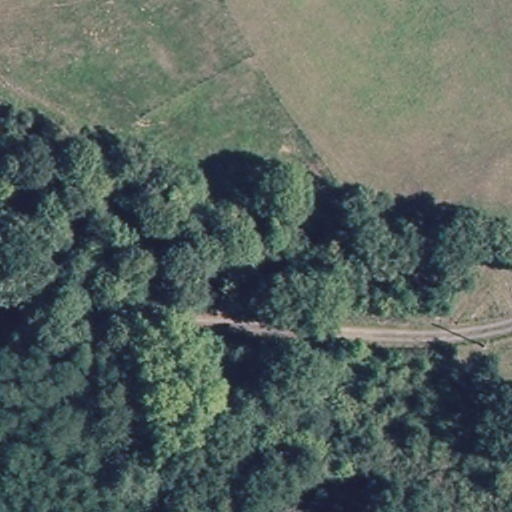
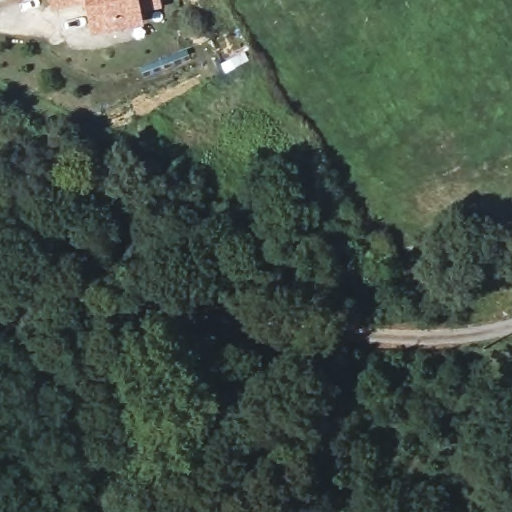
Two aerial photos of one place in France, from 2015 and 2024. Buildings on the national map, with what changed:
new [(142,13),(144,27),(92,37),(86,4),(50,10),(49,0),(161,0),(162,9),(142,13)]

